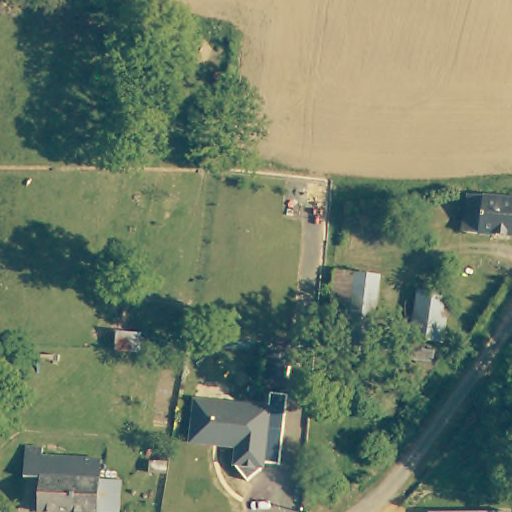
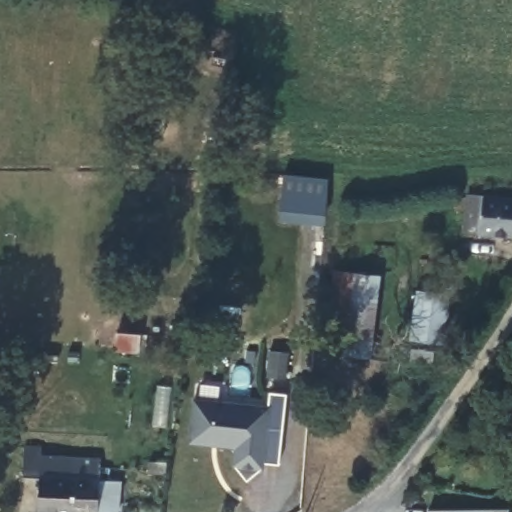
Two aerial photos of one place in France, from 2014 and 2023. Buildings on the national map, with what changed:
new [(325,225),(279,221),(284,174),(328,179),(325,225)]
unchanged [(469,195),(512,201),(512,235),(466,232),(468,209),(469,195)]
unchanged [(372,336),(324,331),(332,268),(382,274),(372,336)]
unchanged [(412,339),(419,292),(448,296),(441,345),(412,339)]
unchanged [(285,381),(266,379),(270,353),(288,357),(285,381)]
unchanged [(269,401),(270,392),(286,393),(279,464),(259,463),(269,401)]
unchanged [(209,435),(205,440),(195,439),(191,433),(197,396),(269,401),(259,463),(244,476),(231,460),(234,442),(218,441),(218,435),(209,435)]
unchanged [(122,512),(44,512),(45,484),(29,484),(30,455),(46,455),(47,464),(105,465),(104,484),(123,485),(122,512)]
unchanged [(505,512),(478,512),(505,511),(505,512)]

